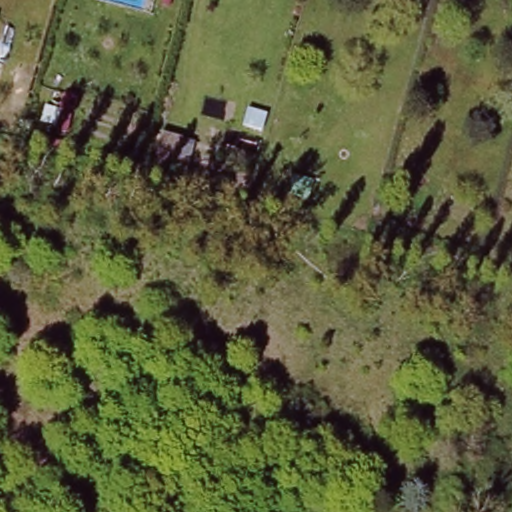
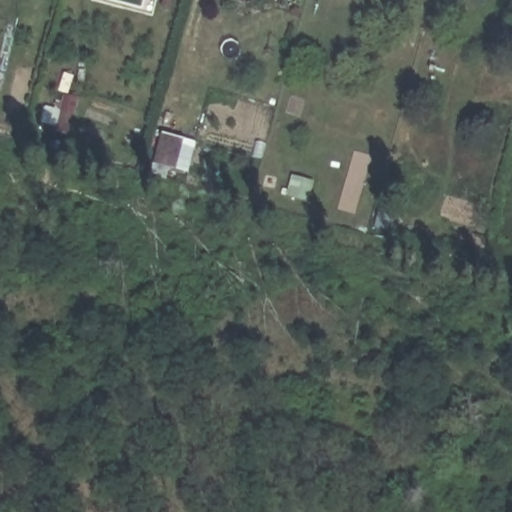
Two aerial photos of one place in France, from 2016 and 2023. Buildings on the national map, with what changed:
unchanged [(510,93),(512,86),(512,93),(510,93)]

